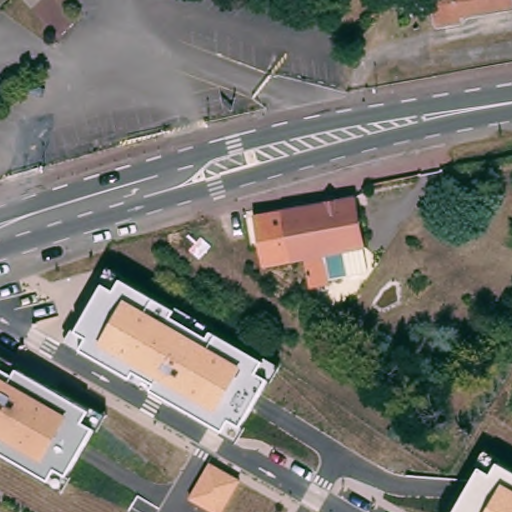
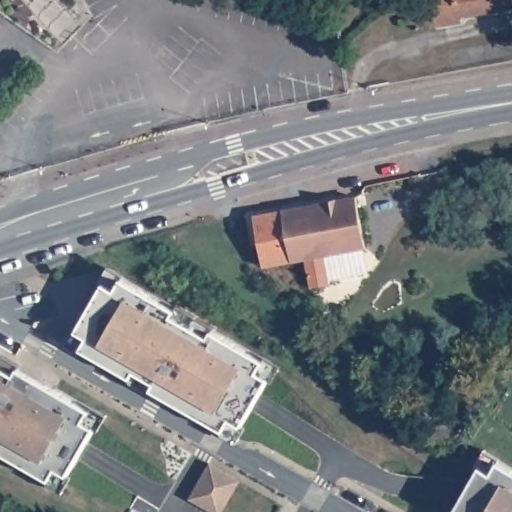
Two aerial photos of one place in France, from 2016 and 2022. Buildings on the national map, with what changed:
unchanged [(512,11),(464,19),(465,24),(444,27),(440,0),(512,0),(512,11)]
unchanged [(361,196),(370,246),(349,250),(352,266),(333,269),(335,282),(315,286),(309,257),(269,265),(260,215),(361,196)]
unchanged [(66,341),(73,328),(76,330),(102,283),(110,270),(121,279),(263,361),(264,359),(279,365),(269,381),(241,425),(245,429),(237,442),(219,433),(221,430),(82,350),(66,341)]
unchanged [(103,415),(63,487),(0,452),(0,356),(103,415)]
unchanged [(208,463),(240,479),(222,512),(212,512),(189,500),(208,463)]

